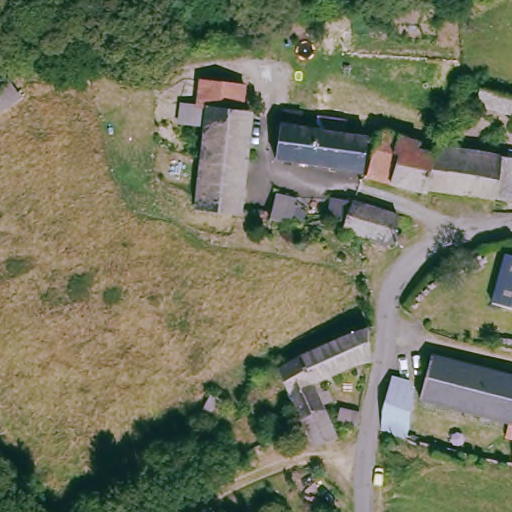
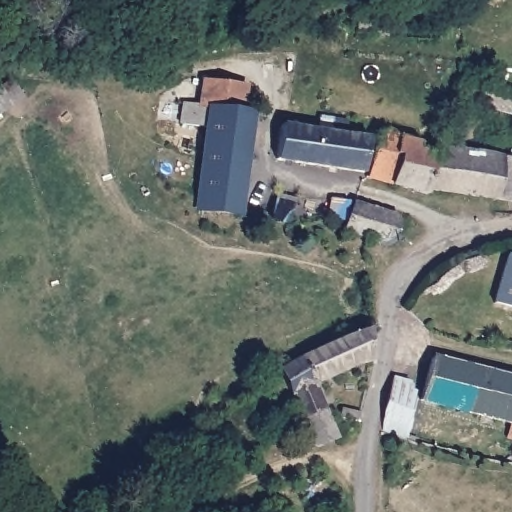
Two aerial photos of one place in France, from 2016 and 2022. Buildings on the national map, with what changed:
unchanged [(0,110),(0,77),(3,74),(18,97),(0,110)]
unchanged [(243,107),(252,110),(241,213),(191,208),(199,126),(171,122),(175,102),(179,102),(181,80),(243,83),(243,107)]
unchanged [(299,127),(299,116),(318,117),(318,131),(364,137),(360,174),(278,160),(281,126),(299,127)]
unchanged [(374,140),(410,144),(409,159),(431,161),(426,187),(373,180),(373,176),(374,140)]
unchanged [(497,155),(490,191),(426,187),(431,161),(434,151),(497,155)]
unchanged [(512,158),(512,196),(490,191),(497,155),(512,158)]
unchanged [(359,231),(358,204),(393,210),(393,234),(364,232),(359,231)]
unchanged [(271,222),(273,206),(286,208),(285,224),(271,222)]
unchanged [(353,206),(354,228),(334,229),(334,207),(353,206)]
unchanged [(512,255),(512,313),(484,307),(498,251),(512,255)]
unchanged [(341,363),(308,380),(320,414),(326,432),(303,441),(296,422),(276,368),(331,337),(361,329),(368,356),(364,357),(341,363)]
unchanged [(512,372),(512,431),(502,429),(504,415),(417,394),(423,356),(423,352),(512,372)]
unchanged [(403,385),(409,433),(399,430),(381,426),(387,384),(403,385)]
unchanged [(509,457),(512,444),(512,458),(509,457)]

